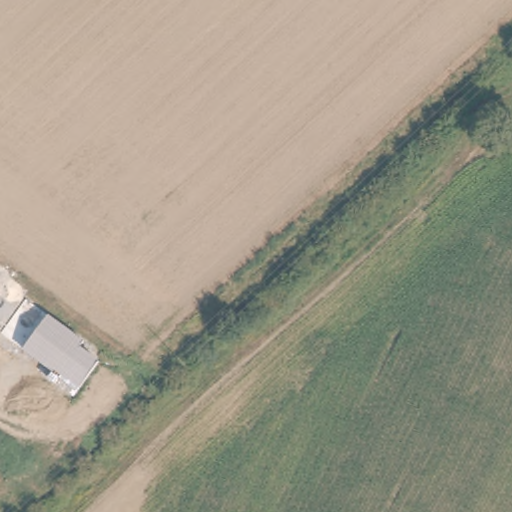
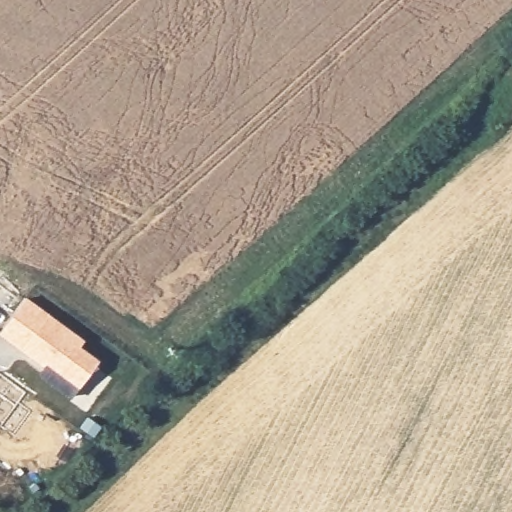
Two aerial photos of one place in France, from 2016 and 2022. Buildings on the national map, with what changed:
unchanged [(88,339),(83,345),(102,360),(73,396),(39,373),(44,366),(0,334),(0,333),(26,295),(88,339)]

